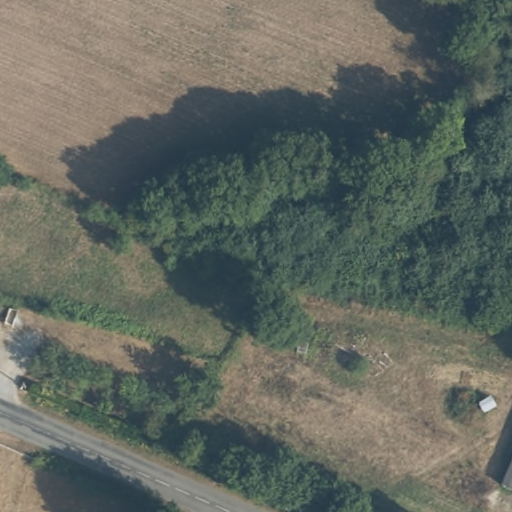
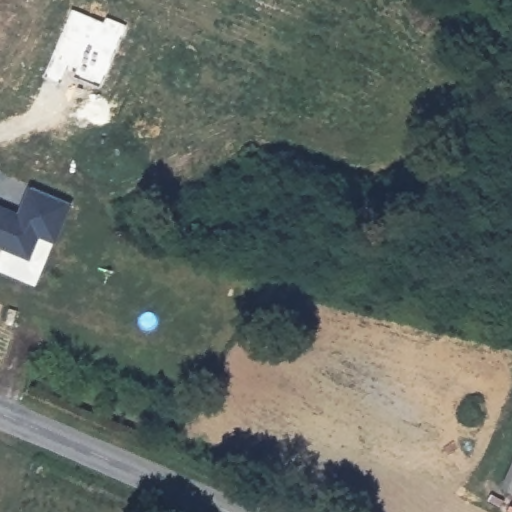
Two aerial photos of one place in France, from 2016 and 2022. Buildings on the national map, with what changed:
new [(29,187),(72,204),(56,244),(40,237),(30,260),(0,247),(0,203),(18,211),(29,187)]
unchanged [(512,474),(512,491),(507,488),(512,474)]

